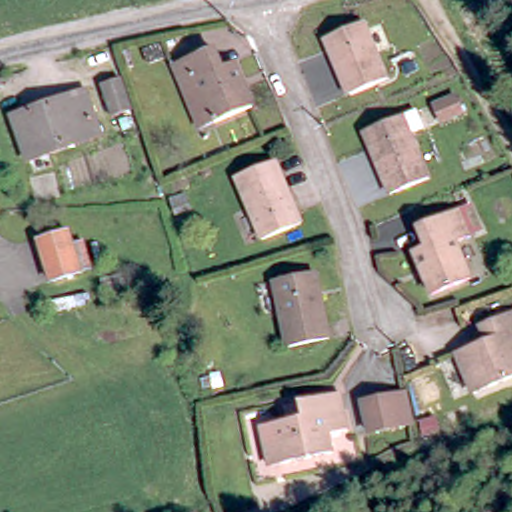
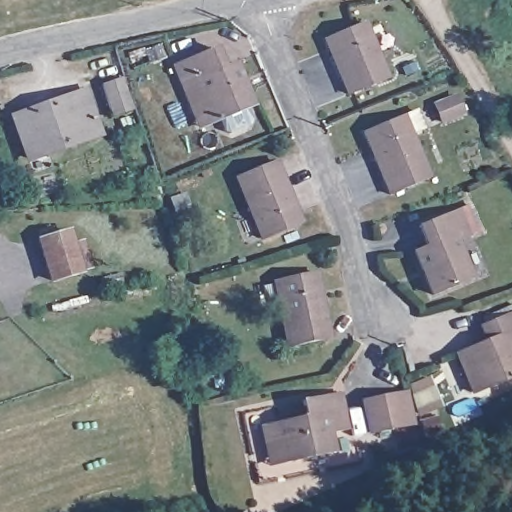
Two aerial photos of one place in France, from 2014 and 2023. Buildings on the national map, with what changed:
unchanged [(389,83),(350,97),(326,36),(364,22),(389,83)]
unchanged [(195,94),(183,67),(223,51),(232,71),(245,66),(262,110),(225,125),(210,131),(195,94)]
unchanged [(112,121),(101,90),(119,84),(130,114),(112,121)]
unchanged [(83,95),(99,134),(28,160),(12,119),(83,95)]
unchanged [(462,107),(469,123),(447,131),(440,115),(462,107)]
unchanged [(409,121),(430,176),(392,191),(370,136),(409,121)]
unchanged [(276,163),(300,227),(262,242),(237,180),(276,163)]
unchanged [(439,292),(422,248),(434,243),(425,224),(465,208),(467,211),(479,205),(487,227),(475,233),(462,238),(477,277),(439,292)]
unchanged [(78,276),(51,283),(41,242),(67,235),(70,249),(83,246),(90,273),(78,276)]
unchanged [(319,279),(332,346),(291,354),(277,287),(319,279)]
unchanged [(477,393),(461,351),(492,341),(486,325),(512,315),(512,379),(477,393)]
unchanged [(362,403),(395,397),(408,394),(415,424),(402,427),(369,434),(362,403)]
unchanged [(269,447),(264,427),(277,425),(290,423),(287,405),(302,403),(345,396),(351,432),(330,436),(334,455),(285,464),(273,466),(269,447)]

